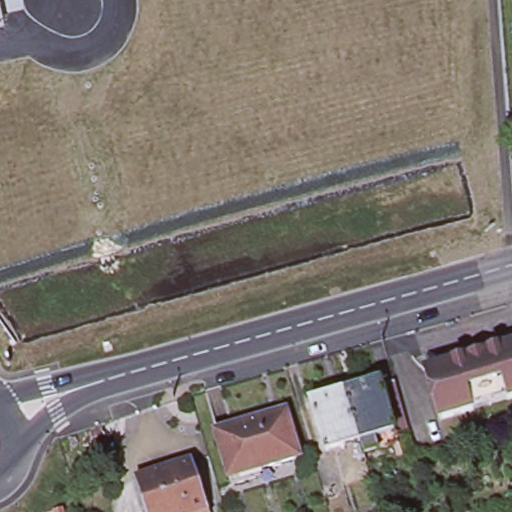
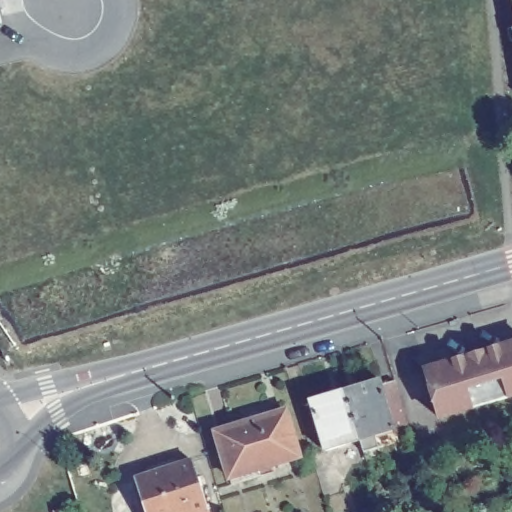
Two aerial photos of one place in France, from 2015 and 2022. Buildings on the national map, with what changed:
unchanged [(512,0),(512,4),(511,0),(512,0)]
unchanged [(2,14),(3,25),(0,26),(0,8),(2,14)]
unchanged [(423,369),(512,343),(512,397),(503,399),(472,409),(438,419),(423,369)]
unchanged [(379,383),(392,429),(357,441),(343,394),(379,383)]
unchanged [(324,451),(310,403),(343,394),(357,441),(324,451)]
unchanged [(230,486),(214,432),(285,412),(297,456),(257,468),(260,477),(230,486)]
unchanged [(133,479),(192,461),(207,509),(199,512),(144,512),(133,479)]
unchanged [(59,509),(60,512),(51,512),(59,509)]

